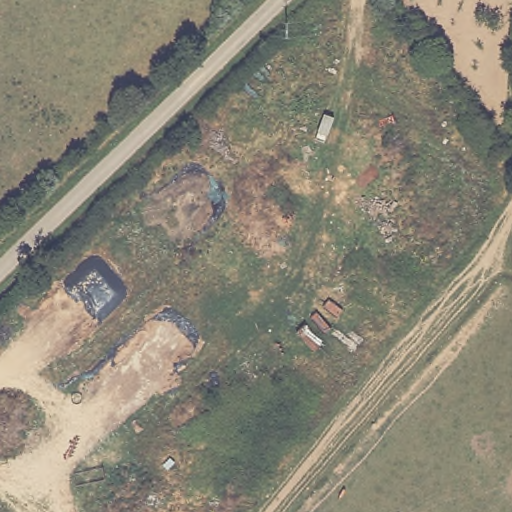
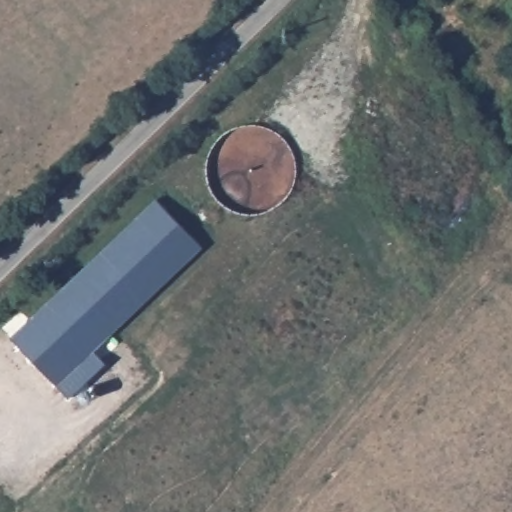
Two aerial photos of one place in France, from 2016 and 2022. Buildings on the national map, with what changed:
new [(155,198),(203,248),(93,351),(105,363),(69,397),(58,386),(11,337),(155,198)]

